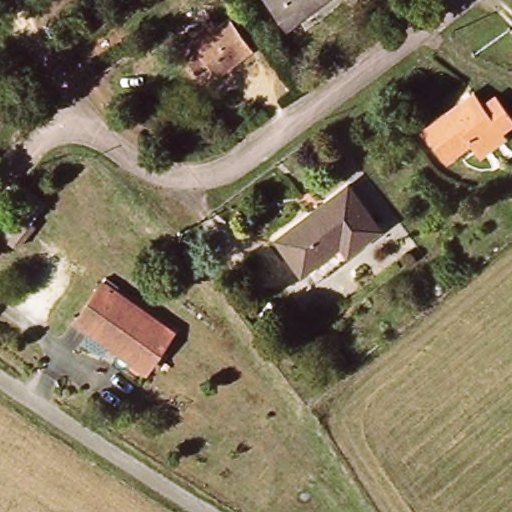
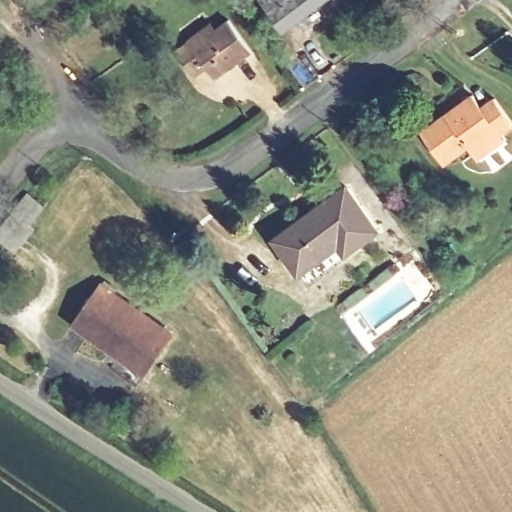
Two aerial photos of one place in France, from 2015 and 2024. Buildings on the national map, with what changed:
unchanged [(262,0),(284,0),(269,12),(262,0)]
unchanged [(285,32),(269,12),(284,0),(325,0),(285,32)]
unchanged [(216,85),(209,73),(192,83),(174,54),(189,45),(195,46),(227,25),(251,59),(216,85)]
unchanged [(474,100),(482,112),(500,100),(512,119),(512,131),(500,139),(505,147),(477,164),(467,151),(444,166),(442,168),(420,135),(422,132),(474,100)]
unchanged [(345,185),(375,230),(306,281),(274,237),(345,185)]
unchanged [(48,206),(31,224),(36,229),(17,252),(0,239),(0,226),(28,191),(48,206)]
unchanged [(150,372),(86,330),(83,334),(76,327),(99,293),(102,289),(173,338),(150,372)]

